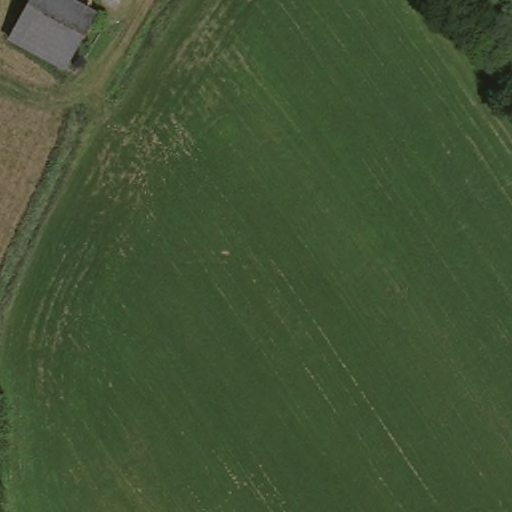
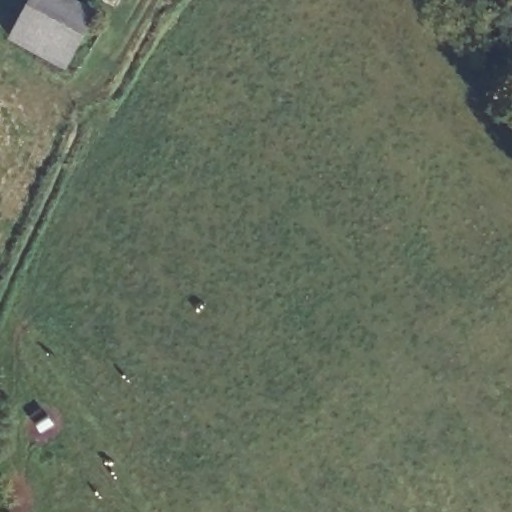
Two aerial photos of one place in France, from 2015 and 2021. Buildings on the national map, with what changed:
unchanged [(27,0),(60,0),(41,52),(11,40),(27,0)]
unchanged [(60,0),(63,0),(89,10),(69,63),(41,52),(60,0)]

